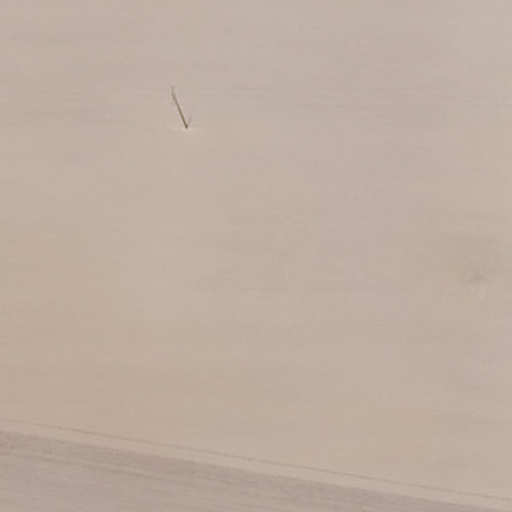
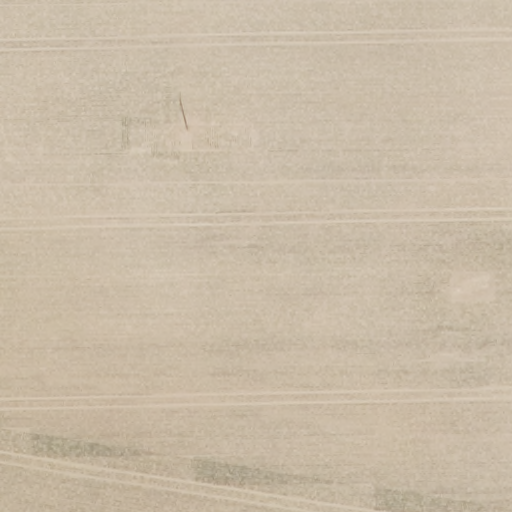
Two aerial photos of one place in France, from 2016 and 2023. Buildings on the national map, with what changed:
[]

